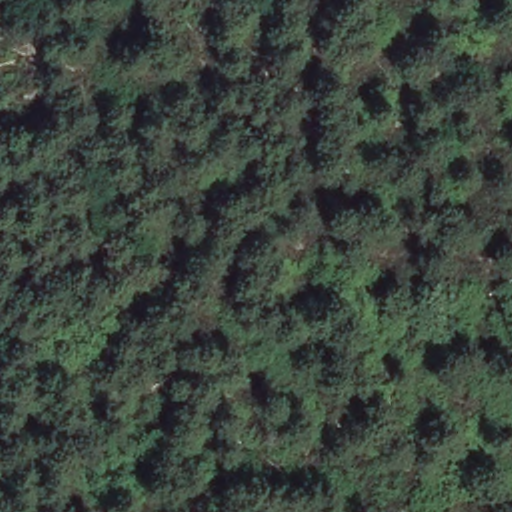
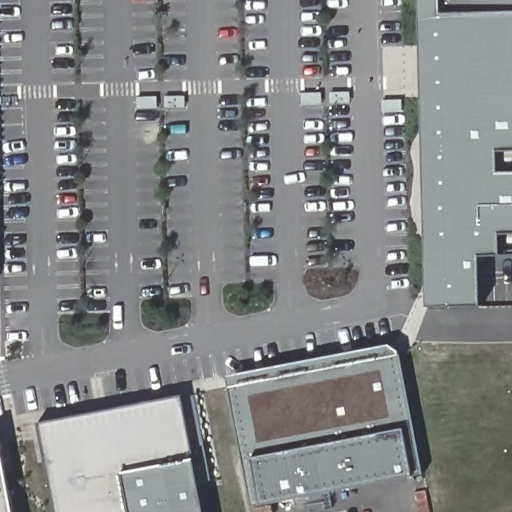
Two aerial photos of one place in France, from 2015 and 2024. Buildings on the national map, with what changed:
new [(420,0),(435,0),(436,16),(457,15),(457,46),(481,45),(482,94),(439,95),(446,308),(427,307),(420,0)]
new [(482,307),(446,308),(439,95),(482,94),(481,45),(457,46),(457,15),(436,16),(435,0),(512,0),(512,255),(480,257),(482,307)]
new [(401,353),(423,474),(250,507),(227,386),(401,353)]
new [(62,417),(63,424),(87,420),(85,413),(135,403),(136,411),(160,406),(158,399),(183,394),(205,512),(55,512),(37,422),(62,417)]
new [(14,512),(0,512),(0,439),(14,512)]

